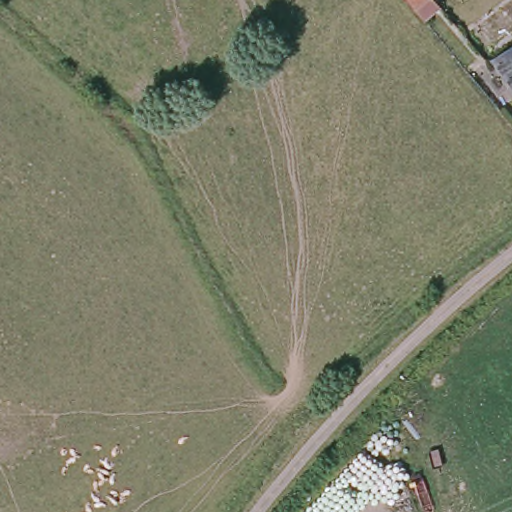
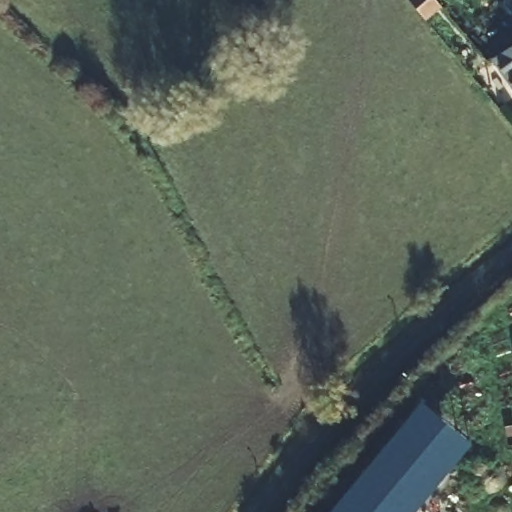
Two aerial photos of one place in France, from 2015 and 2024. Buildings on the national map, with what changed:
unchanged [(421,19),(407,0),(432,0),(437,6),(421,19)]
unchanged [(512,43),(512,81),(495,56),(512,43)]
new [(419,401),(470,443),(413,512),(329,512),(419,401)]

